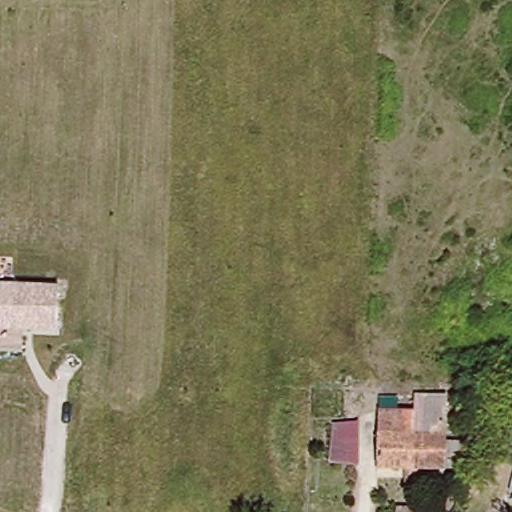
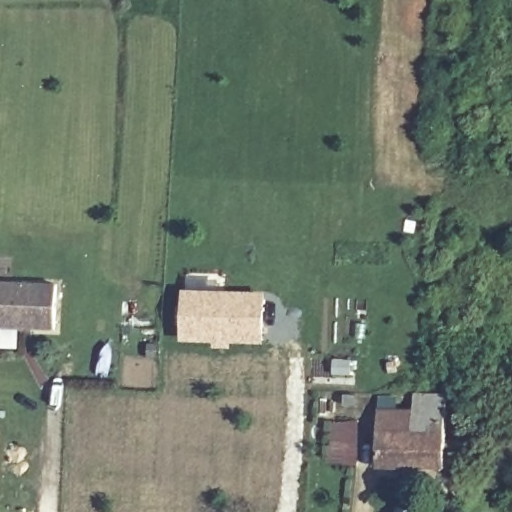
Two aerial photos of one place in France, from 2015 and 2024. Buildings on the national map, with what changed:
new [(182,287),(185,287),(186,272),(225,275),(224,288),(267,292),(265,344),(179,341),(182,287)]
unchanged [(0,279),(58,282),(57,331),(0,329),(0,279)]
unchanged [(380,410),(412,411),(412,393),(447,397),(443,470),(377,467),(380,410)]

